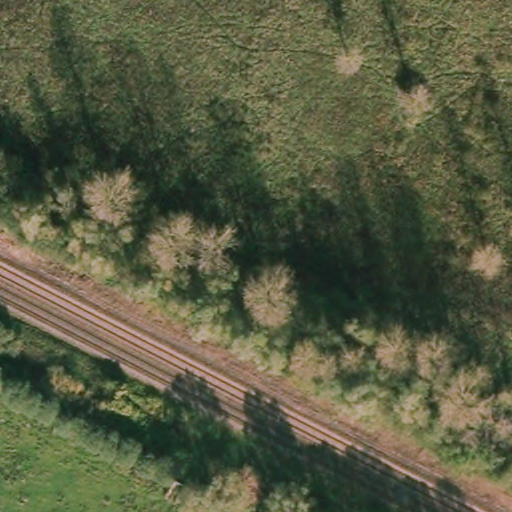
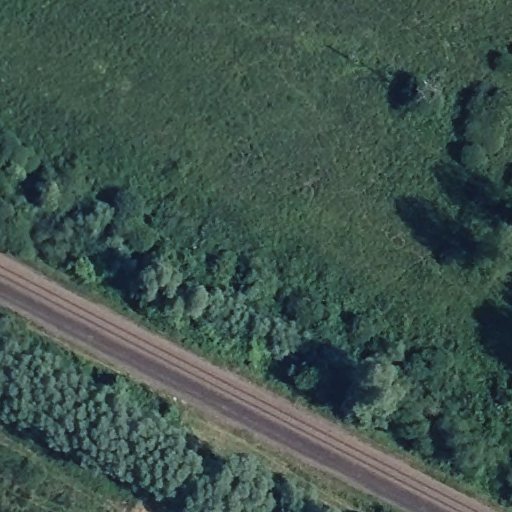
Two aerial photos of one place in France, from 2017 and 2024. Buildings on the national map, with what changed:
unchanged [(145,442),(152,426),(171,435),(162,451),(145,442)]

